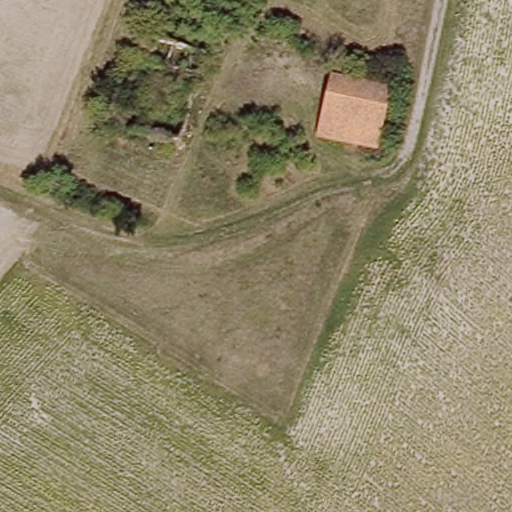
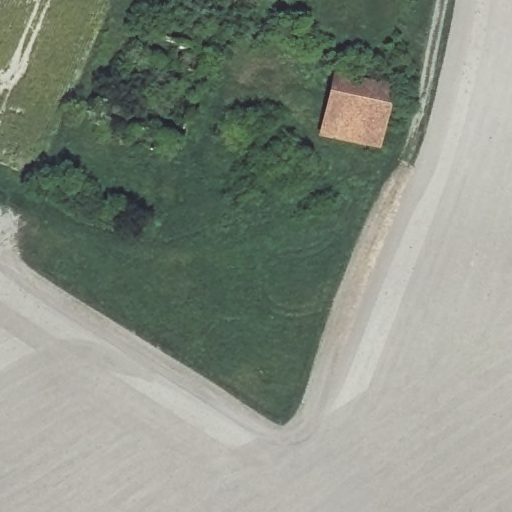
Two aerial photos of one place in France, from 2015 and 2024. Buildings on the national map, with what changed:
unchanged [(319,134),(334,72),(388,87),(374,147),(319,134)]

